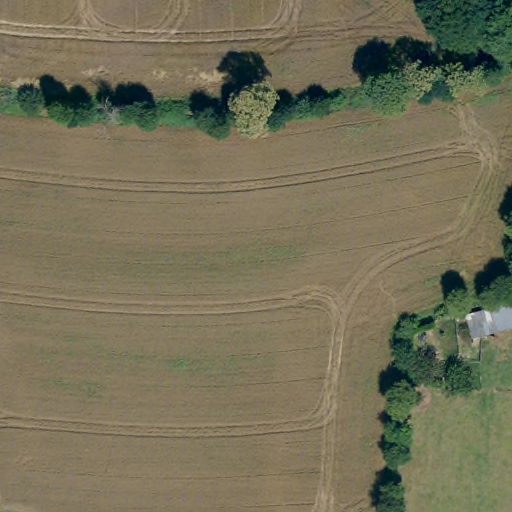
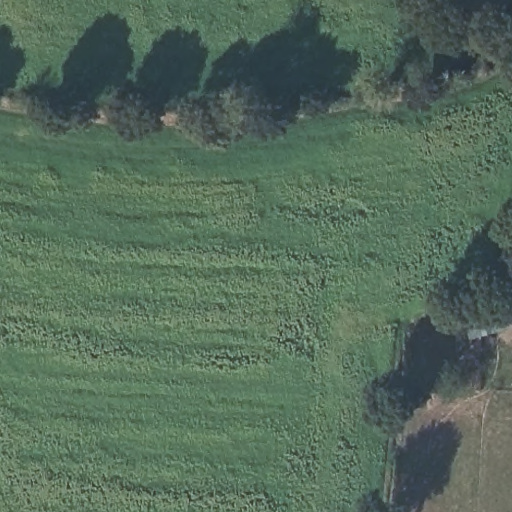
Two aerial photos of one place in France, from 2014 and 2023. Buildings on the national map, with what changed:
unchanged [(512,300),(512,330),(477,338),(470,312),(512,300)]

